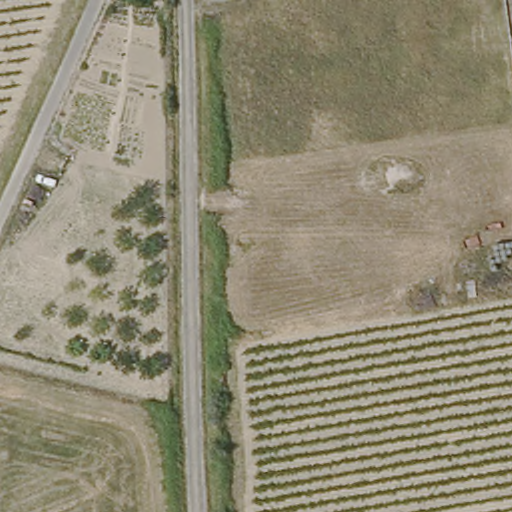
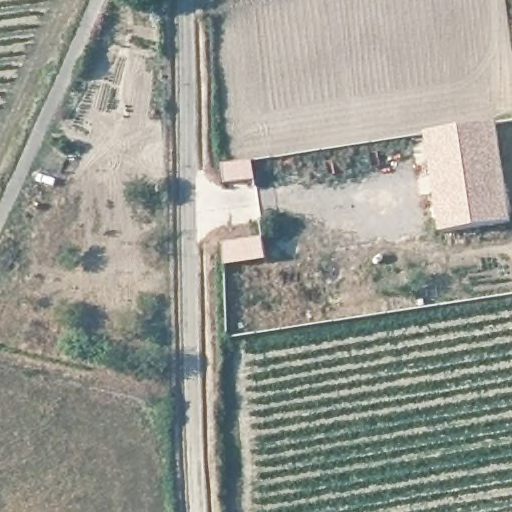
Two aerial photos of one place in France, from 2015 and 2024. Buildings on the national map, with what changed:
new [(491,129),(506,227),(437,237),(422,139),(491,129)]
new [(252,162),(256,181),(227,186),(223,167),(252,162)]
new [(261,239),(264,260),(235,264),(232,244),(261,239)]

